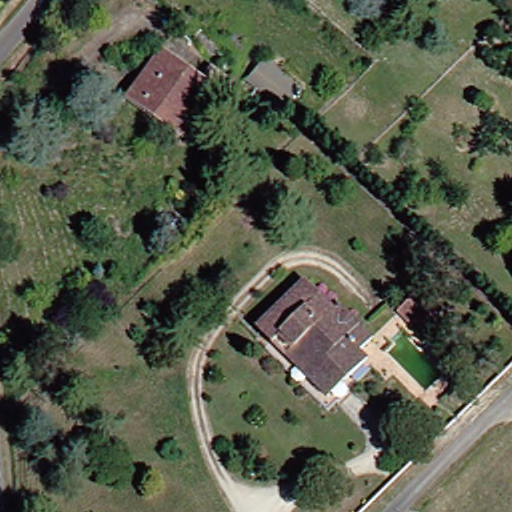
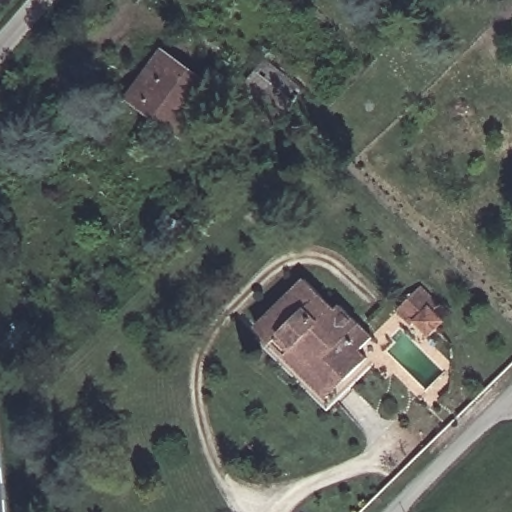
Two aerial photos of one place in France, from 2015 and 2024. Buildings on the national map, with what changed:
unchanged [(209,85),(178,129),(127,93),(158,49),(209,85)]
unchanged [(261,55),(297,87),(277,110),(241,80),(261,55)]
unchanged [(300,274),(331,305),(336,300),(368,332),(355,345),(363,353),(321,394),(251,322),(300,274)]
unchanged [(444,317),(429,332),(414,317),(411,320),(398,306),(416,287),(444,317)]

